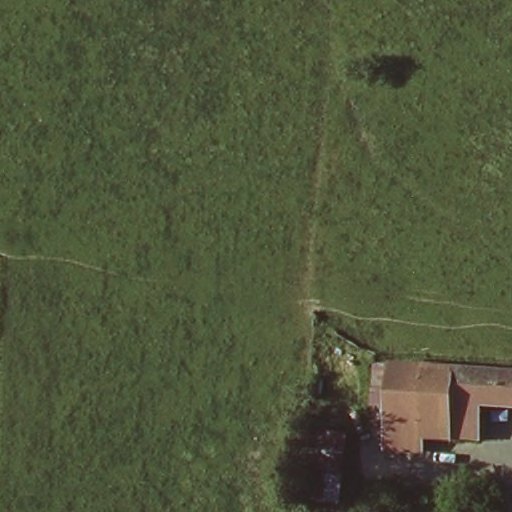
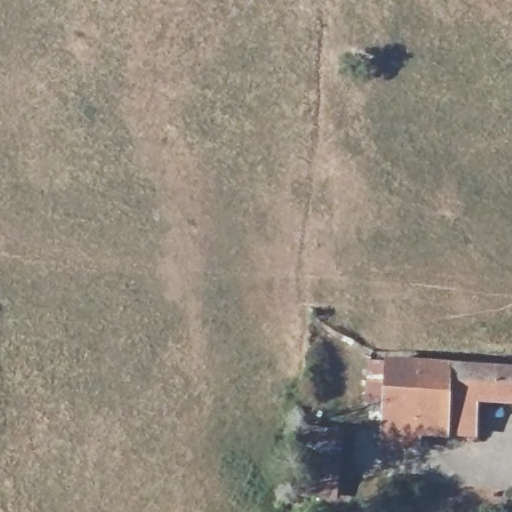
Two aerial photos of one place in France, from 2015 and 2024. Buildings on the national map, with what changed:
unchanged [(416,454),(378,453),(378,438),(365,438),(365,409),(360,409),(361,367),(387,367),(419,368),(417,439),(416,454)]
unchanged [(443,439),(417,439),(419,368),(422,368),(447,368),(445,403),(443,439)]
unchanged [(445,403),(447,368),(511,370),(509,405),(474,404),(445,403)]
unchanged [(512,370),(512,406),(509,405),(511,370),(512,370)]
unchanged [(474,404),(471,440),(443,439),(445,403),(474,404)]
unchanged [(306,472),(309,433),(345,438),(341,475),(306,472)]
unchanged [(341,475),(338,505),(304,505),(306,472),(341,475)]

